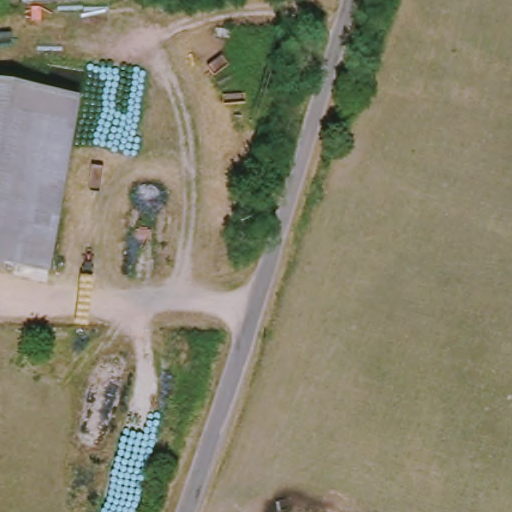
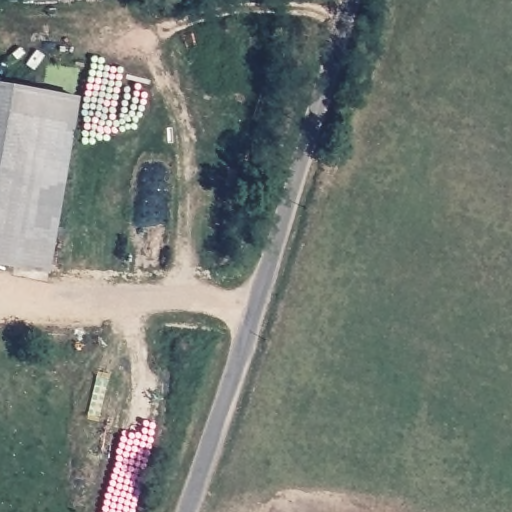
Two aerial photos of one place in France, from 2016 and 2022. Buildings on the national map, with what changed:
unchanged [(24,3),(24,0),(37,0),(36,1),(24,3)]
unchanged [(85,97),(51,271),(0,262),(0,81),(85,97)]

